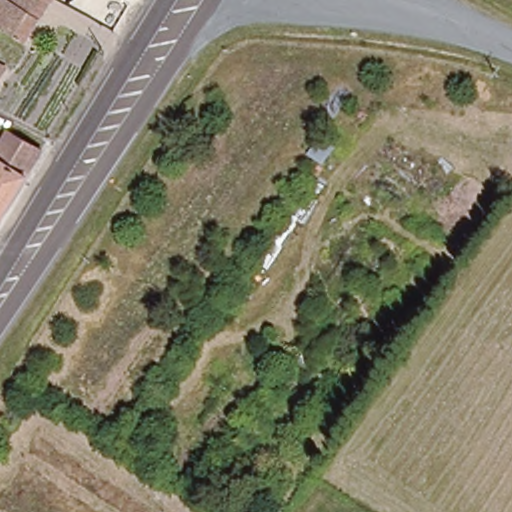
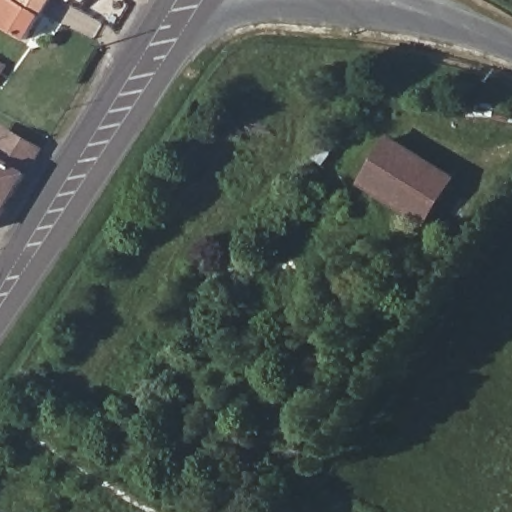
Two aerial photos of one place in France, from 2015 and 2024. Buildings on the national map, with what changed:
unchanged [(0,0),(52,0),(28,39),(0,21),(0,0)]
unchanged [(0,121),(1,119),(45,146),(0,218),(0,121)]
unchanged [(324,167),(309,155),(324,135),(340,147),(324,167)]
new [(390,136),(458,177),(427,226),(359,185),(390,136)]

